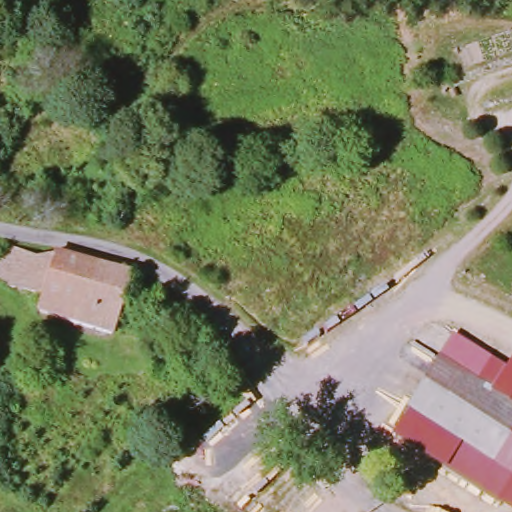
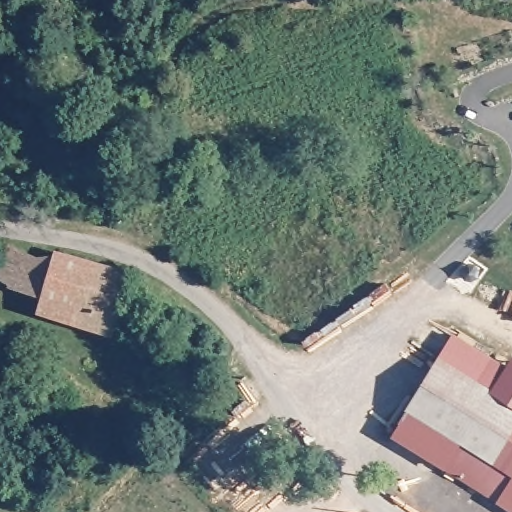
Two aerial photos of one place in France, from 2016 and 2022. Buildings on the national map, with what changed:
unchanged [(37,308),(40,296),(8,286),(10,279),(0,276),(0,251),(2,244),(50,257),(52,250),(127,273),(111,328),(37,308)]
unchanged [(500,508),(437,470),(454,440),(404,408),(431,364),(449,337),(494,364),(482,386),(512,405),(512,486),(500,508)]

